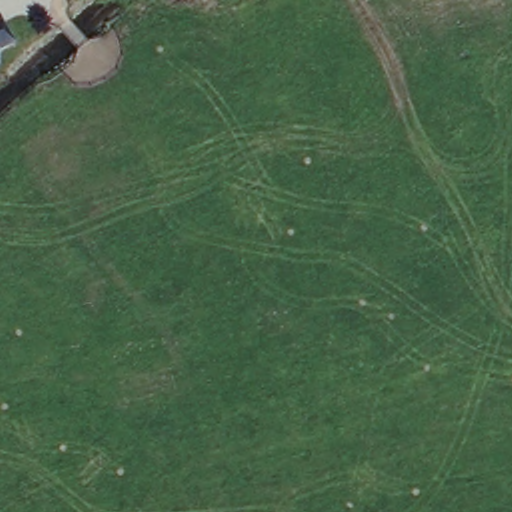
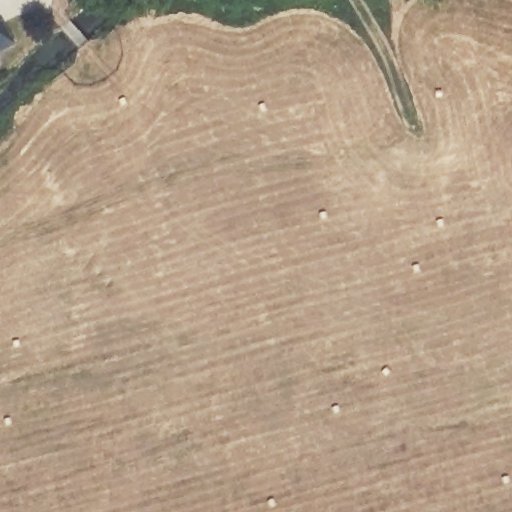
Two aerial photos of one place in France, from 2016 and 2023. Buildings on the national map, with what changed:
unchanged [(15,45),(0,53),(0,23),(5,21),(15,45)]

